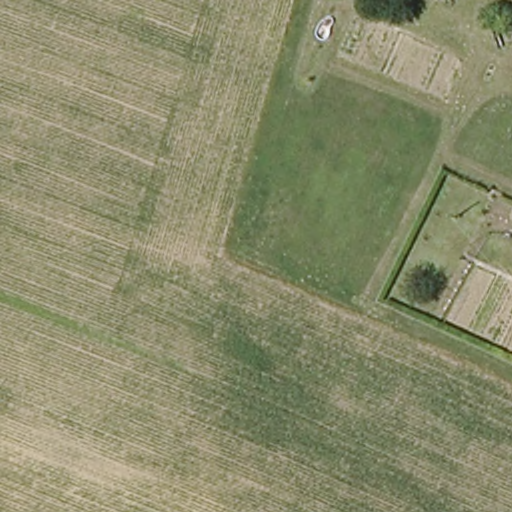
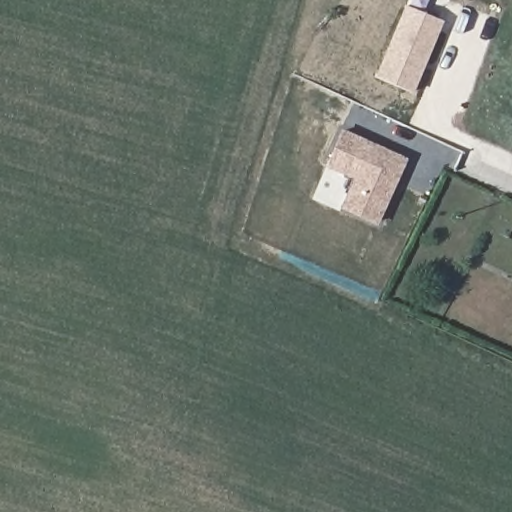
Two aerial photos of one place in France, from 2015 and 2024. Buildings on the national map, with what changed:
new [(413,94),(375,77),(405,5),(443,21),(413,94)]
new [(407,159),(377,225),(340,209),(354,179),(326,167),(342,130),(407,159)]

